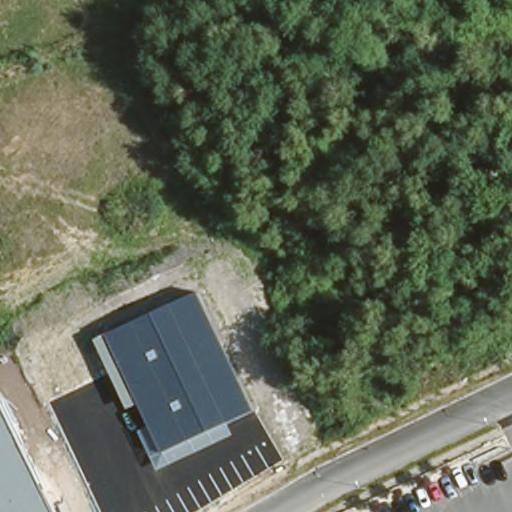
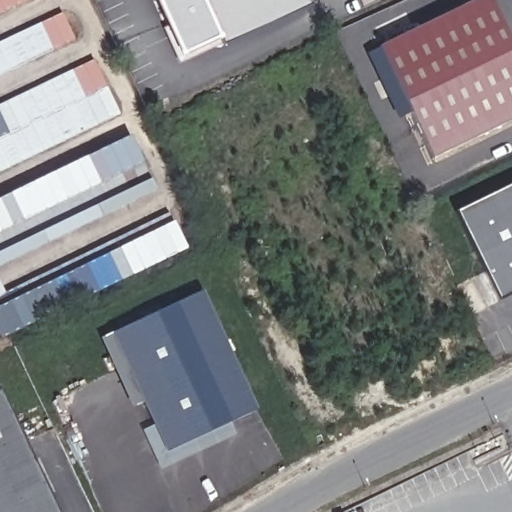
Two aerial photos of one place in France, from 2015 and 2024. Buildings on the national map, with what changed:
new [(0,14),(0,0),(29,0),(0,14)]
new [(311,7),(222,46),(220,40),(182,56),(155,0),(308,0),(311,7)]
new [(481,0),(490,0),(512,46),(512,120),(433,157),(377,47),(481,0)]
new [(0,75),(0,43),(62,13),(75,40),(0,75)]
new [(119,115),(0,173),(0,106),(93,60),(119,115)]
new [(156,190),(0,266),(0,199),(130,136),(156,190)]
new [(512,186),(512,295),(499,301),(456,214),(512,186)]
unchanged [(99,340),(110,335),(201,293),(256,410),(232,422),(235,437),(159,471),(141,431),(153,426),(143,404),(130,409),(99,340)]
unchanged [(0,512),(0,391),(57,512),(0,512)]

